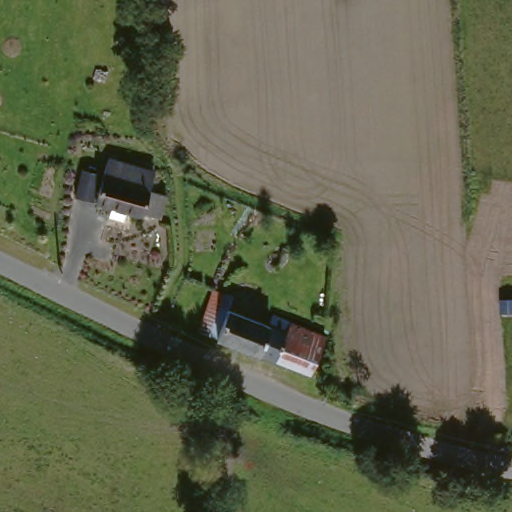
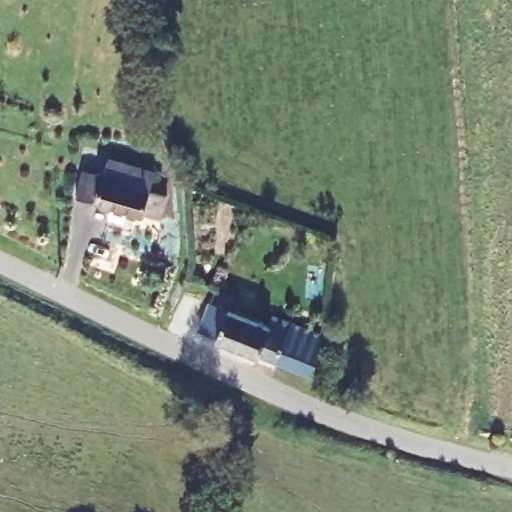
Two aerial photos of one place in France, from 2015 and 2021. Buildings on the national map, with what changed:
unchanged [(151,186),(172,192),(166,212),(148,207),(147,212),(99,198),(106,173),(111,155),(156,168),(151,186)]
unchanged [(93,168),(103,171),(96,197),(85,194),(78,192),(84,166),(93,168)]
unchanged [(234,295),(234,301),(326,329),(316,368),(205,333),(215,290),(233,295),(234,295)]

